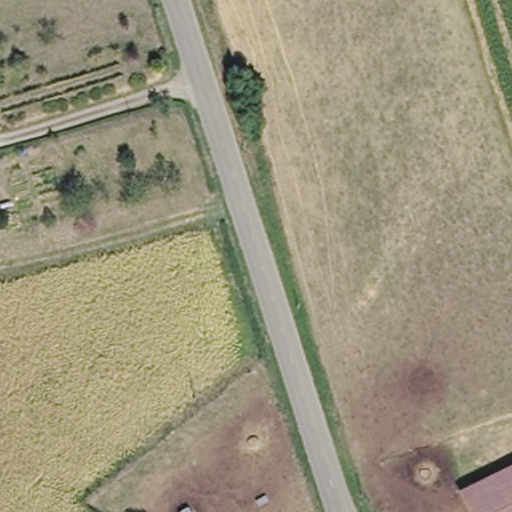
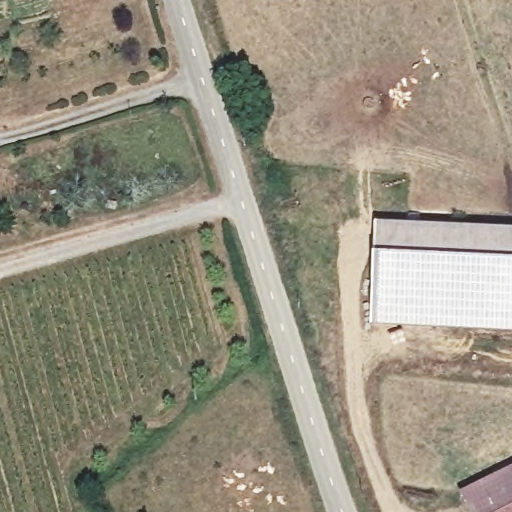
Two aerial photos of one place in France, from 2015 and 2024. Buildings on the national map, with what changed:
new [(383,211),(512,231),(512,333),(367,310),(383,211)]
demolished [(459,490),(512,465),(512,512),(471,512),(459,490)]
new [(512,512),(470,512),(463,498),(512,474),(512,512)]

